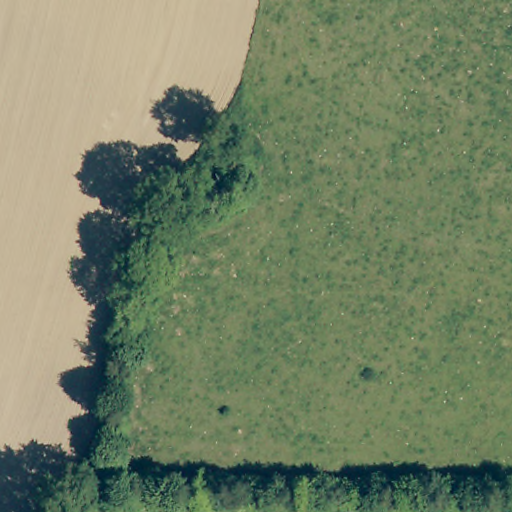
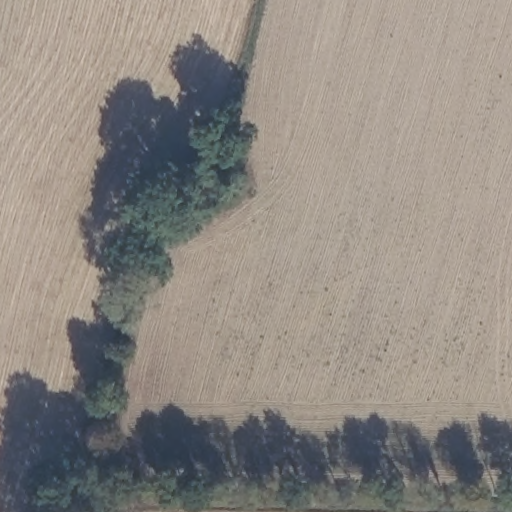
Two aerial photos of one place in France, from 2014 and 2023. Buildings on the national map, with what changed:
[]

